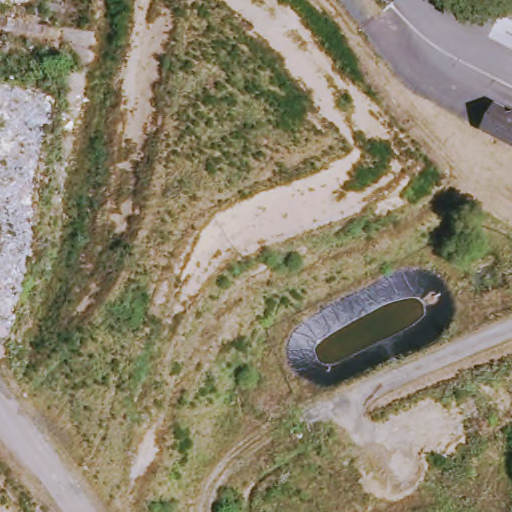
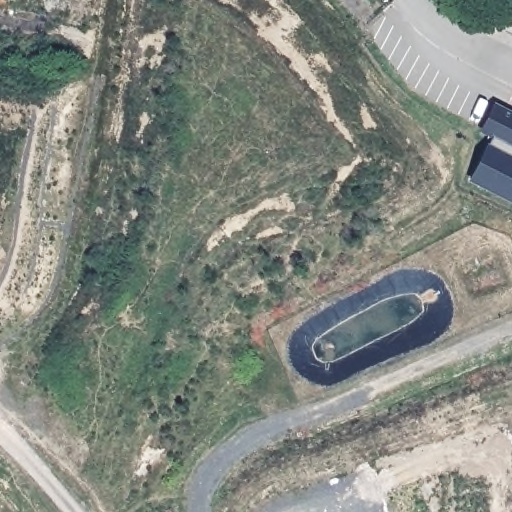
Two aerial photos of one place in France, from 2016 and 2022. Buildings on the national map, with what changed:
new [(492,138),(480,132),(494,103),(512,112),(512,202),(470,181),(492,138)]
demolished [(500,108),(512,113),(512,143),(490,133),(500,108)]

